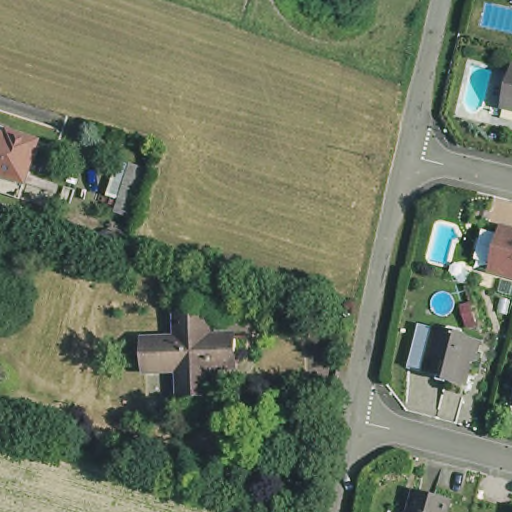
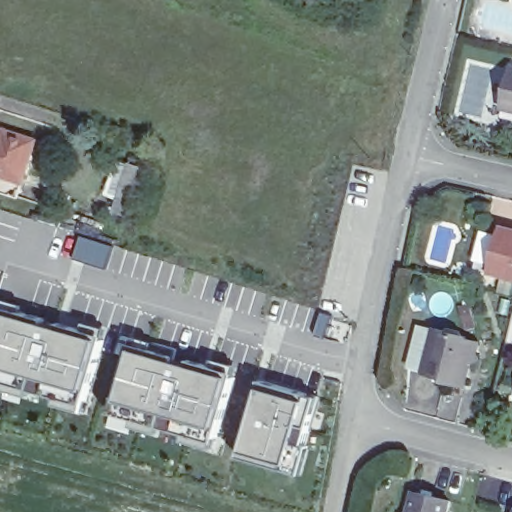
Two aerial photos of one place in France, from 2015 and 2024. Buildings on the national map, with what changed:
unchanged [(512,76),(512,94),(507,92),(512,76)]
unchanged [(0,127),(7,129),(8,125),(39,134),(25,176),(21,191),(0,184),(0,127)]
unchanged [(494,271),(495,268),(505,231),(512,233),(512,276),(494,271)]
demolished [(219,377),(220,396),(205,396),(205,400),(186,400),(185,374),(157,374),(155,339),(185,339),(183,317),(212,317),(213,342),(242,341),(242,357),(240,357),(241,367),(240,376),(219,377)]
new [(93,404),(0,378),(0,373),(17,319),(110,343),(93,404)]
unchanged [(486,341),(494,343),(491,352),(495,359),(488,363),(482,387),(462,383),(462,379),(441,373),(425,369),(436,325),(453,330),(482,337),(486,341)]
new [(239,380),(223,441),(117,413),(132,351),(239,380)]
new [(321,399),(301,475),(245,459),(264,384),(321,399)]
unchanged [(413,489),(447,498),(443,512),(399,512),(409,506),(413,489)]

